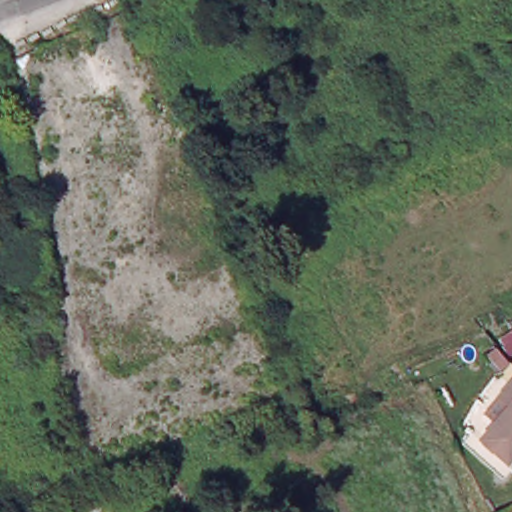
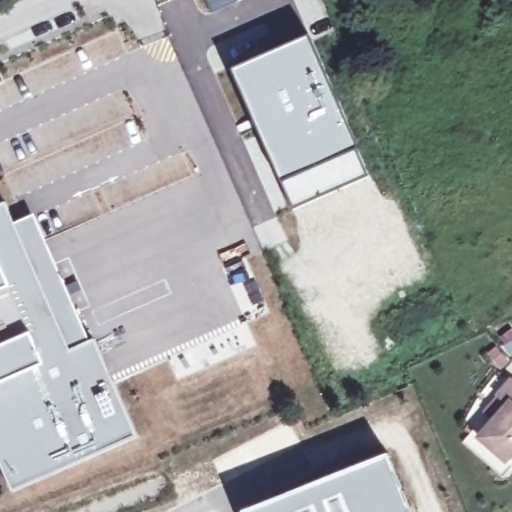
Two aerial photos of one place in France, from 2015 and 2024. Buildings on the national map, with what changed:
new [(210,12),(205,0),(239,0),(210,12)]
new [(309,34),(357,146),(369,175),(292,208),(231,69),(309,34)]
demolished [(90,130),(101,162),(77,173),(66,139),(90,130)]
new [(2,201),(12,224),(32,215),(88,342),(94,340),(135,437),(12,491),(0,465),(0,203),(2,201)]
unchanged [(512,393),(512,398),(510,396),(512,393)]
unchanged [(512,413),(512,459),(489,438),(512,413)]
new [(276,512),(393,463),(413,512),(276,512)]

